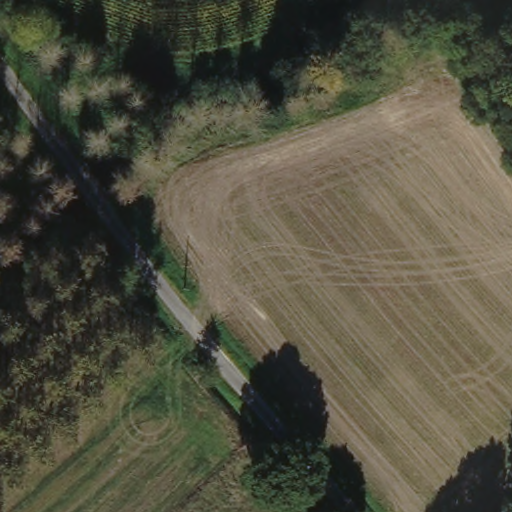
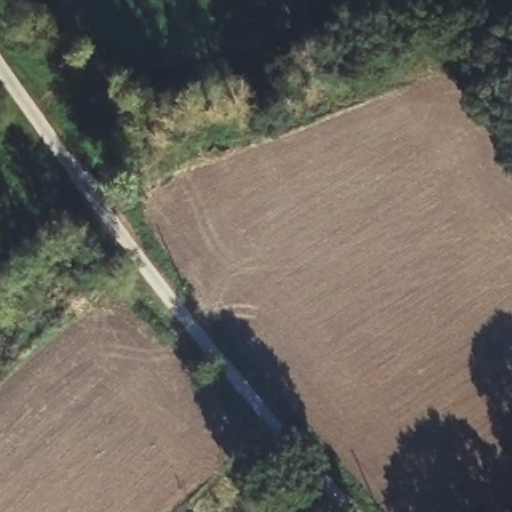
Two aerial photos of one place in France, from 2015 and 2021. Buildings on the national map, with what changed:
[]

